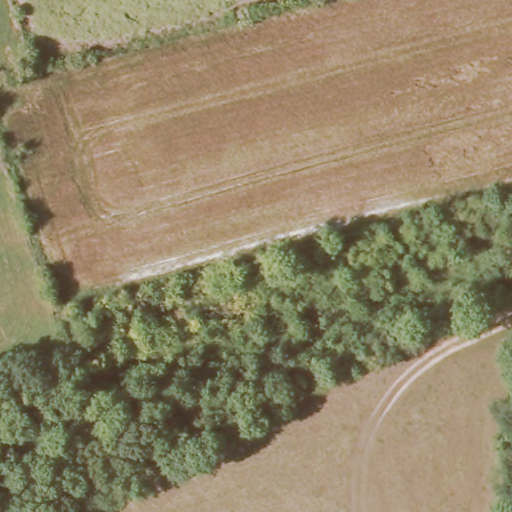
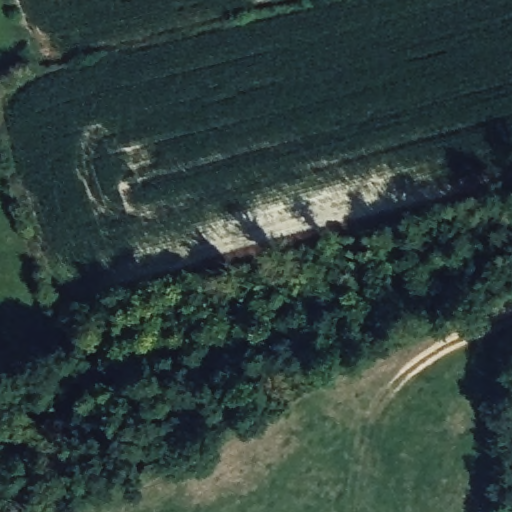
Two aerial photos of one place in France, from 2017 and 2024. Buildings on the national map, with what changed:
[]

